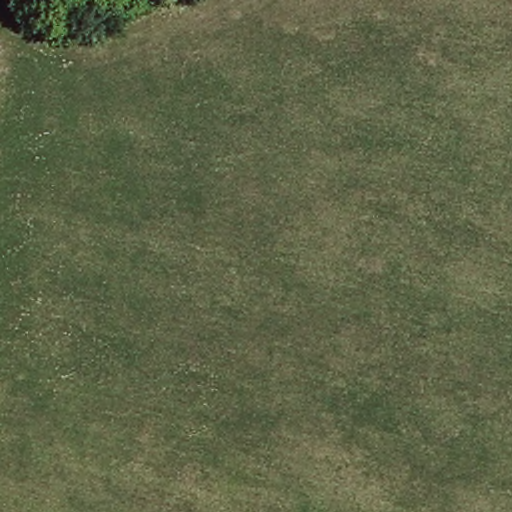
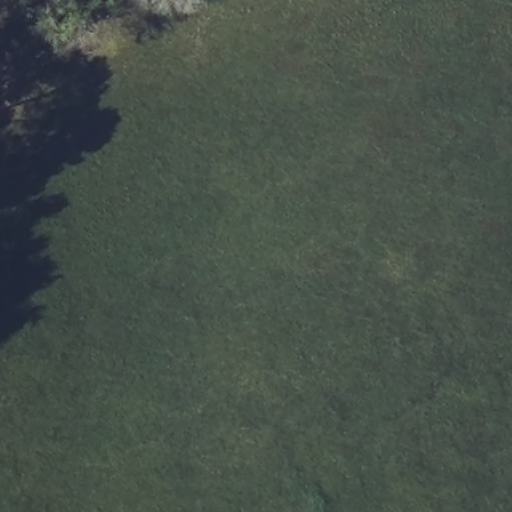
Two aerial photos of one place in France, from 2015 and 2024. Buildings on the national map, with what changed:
[]

